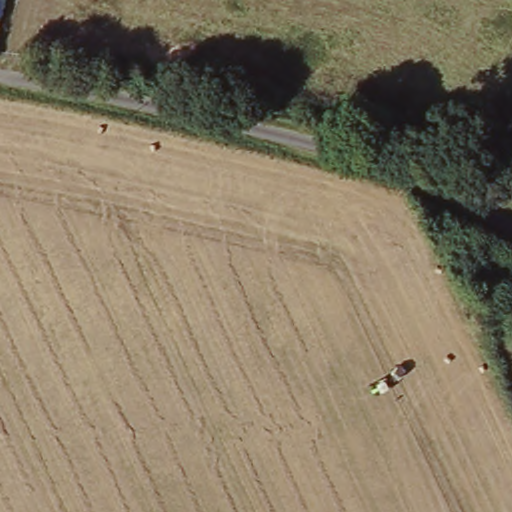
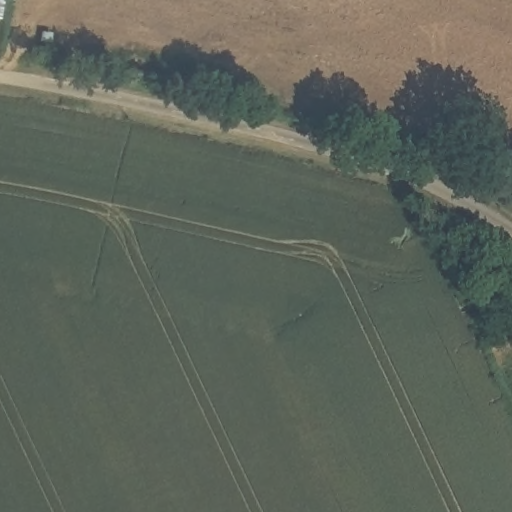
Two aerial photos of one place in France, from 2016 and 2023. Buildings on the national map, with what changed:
unchanged [(8,0),(0,58),(0,0),(8,0)]

